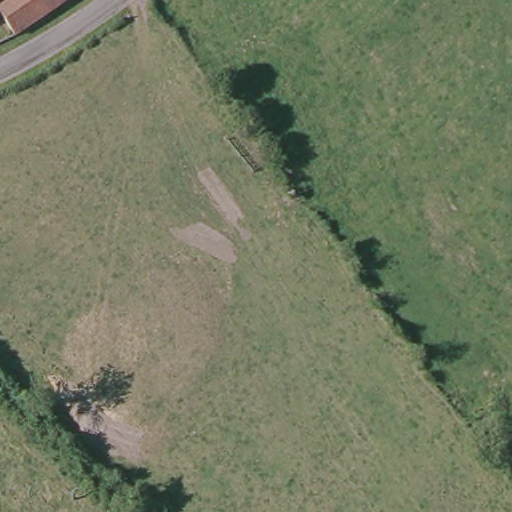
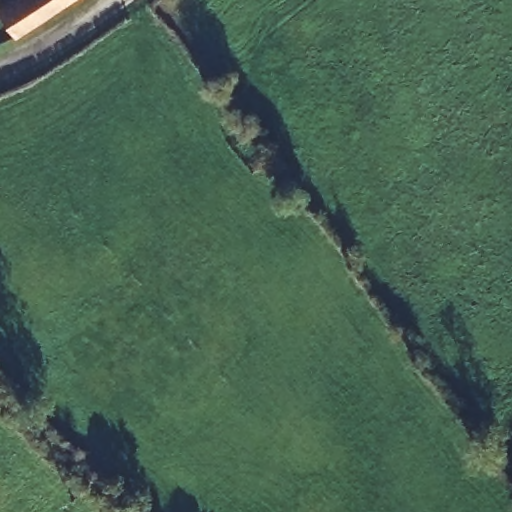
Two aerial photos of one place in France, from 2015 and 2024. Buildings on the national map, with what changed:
unchanged [(66,0),(10,37),(0,21),(0,9),(14,0),(66,0)]

